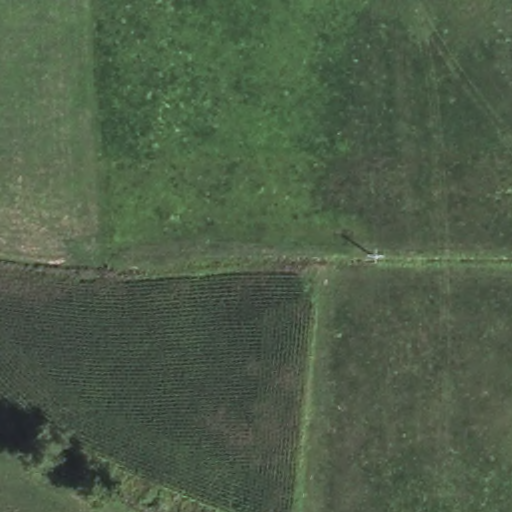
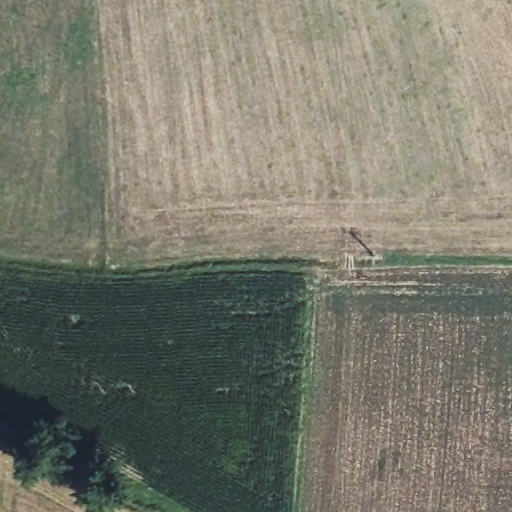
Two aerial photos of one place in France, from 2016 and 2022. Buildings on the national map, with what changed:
[]

